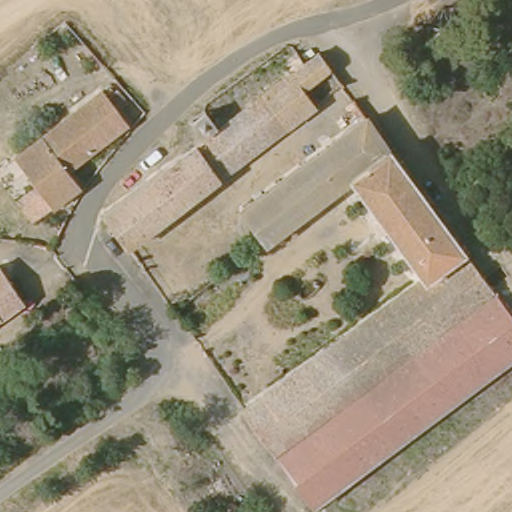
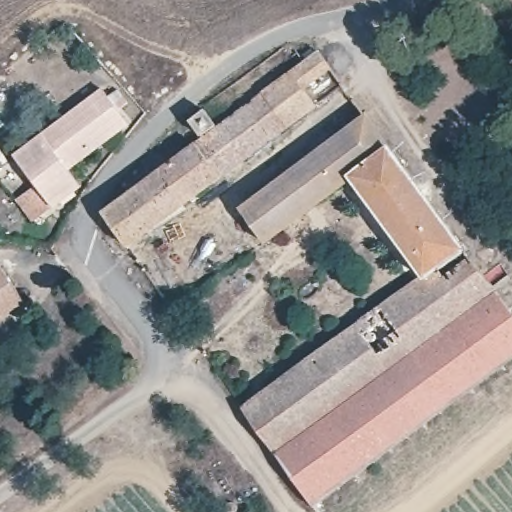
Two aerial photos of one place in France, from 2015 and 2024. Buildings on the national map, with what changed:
unchanged [(300,122),(275,89),(300,71),(286,54),(301,42),(315,60),(329,49),(342,66),(313,88),(325,102),(300,122)]
unchanged [(209,141),(275,89),(300,122),(232,174),(209,141)]
unchanged [(44,224),(28,201),(48,184),(25,158),(108,91),(114,100),(121,94),(129,106),(123,111),(133,125),(79,169),(92,186),(44,224)]
unchanged [(248,411),(430,279),(357,181),(273,244),(252,216),(373,122),(407,165),(512,308),(512,364),(317,509),(248,411)]
unchanged [(115,212),(209,141),(232,174),(140,246),(115,212)]
unchanged [(0,317),(0,261),(6,257),(34,292),(0,317)]

